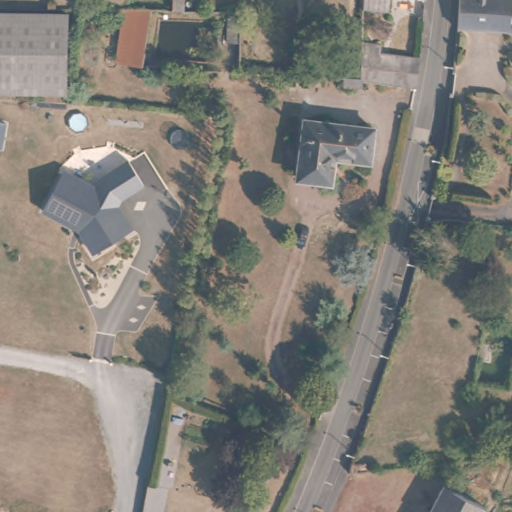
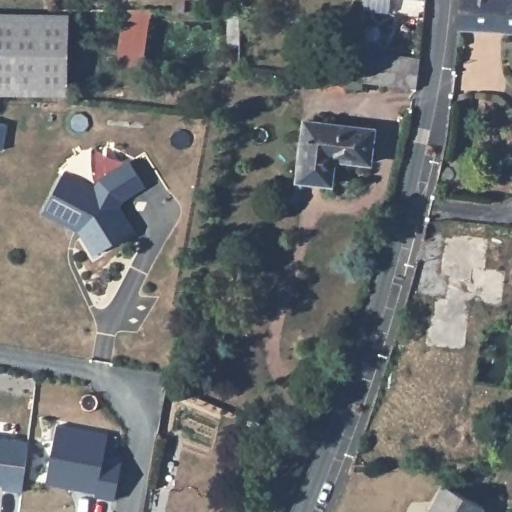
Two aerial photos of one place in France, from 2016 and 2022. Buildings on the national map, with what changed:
unchanged [(45,9),(46,0),(55,0),(54,9),(45,9)]
unchanged [(170,8),(171,0),(184,0),(184,9),(170,8)]
unchanged [(362,6),(362,0),(390,0),(388,11),(362,6)]
unchanged [(424,0),(428,0),(427,1),(424,0)]
unchanged [(457,0),(512,0),(512,34),(453,31),(457,0)]
unchanged [(150,8),(140,65),(115,61),(126,9),(150,8)]
unchanged [(68,14),(65,94),(0,92),(0,12),(68,14)]
unchanged [(423,56),(418,86),(403,85),(359,83),(360,54),(423,56)]
unchanged [(376,133),(370,168),(333,161),(329,185),(297,180),(306,124),(376,133)]
unchanged [(92,186),(96,179),(125,160),(140,183),(117,199),(114,205),(129,228),(91,252),(75,228),(39,210),(61,170),(92,186)]
new [(55,424),(106,434),(102,456),(120,460),(113,498),(94,495),(95,493),(44,483),(55,424)]
unchanged [(277,438),(271,452),(247,442),(253,428),(277,438)]
unchanged [(440,486),(481,508),(479,512),(427,512),(440,486)]

